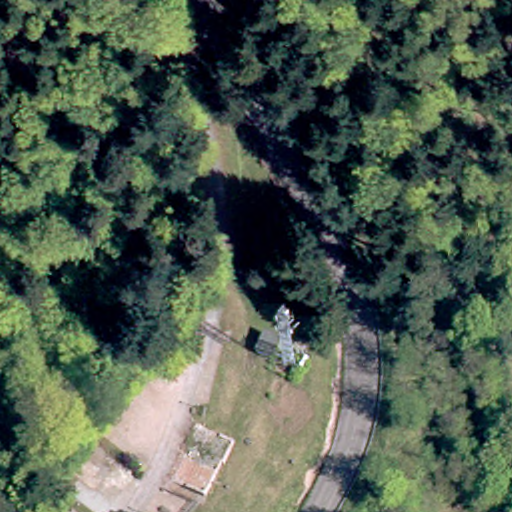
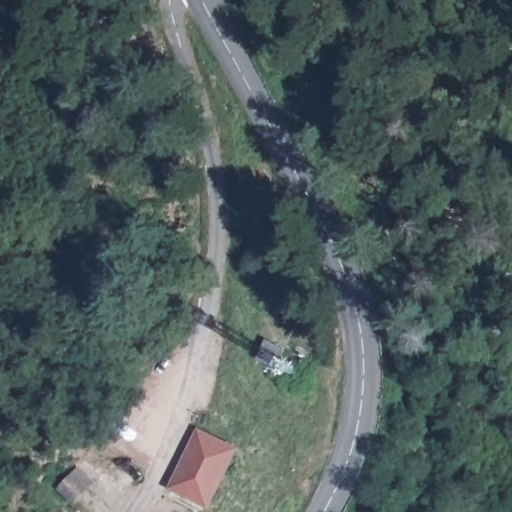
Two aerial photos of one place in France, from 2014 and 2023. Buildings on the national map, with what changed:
new [(241,448),(211,509),(169,488),(199,428),(241,448)]
demolished [(248,451),(237,476),(231,474),(217,507),(185,491),(211,435),(248,451)]

